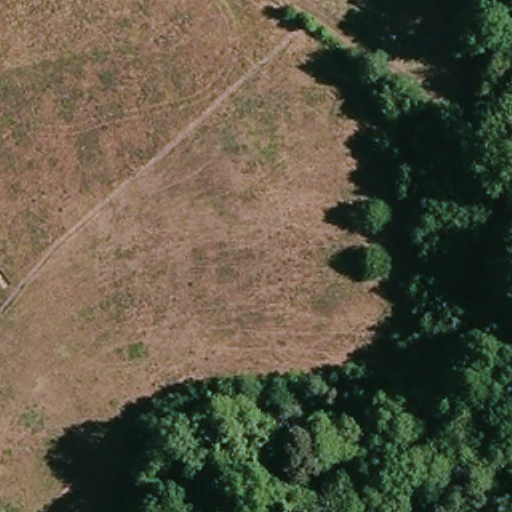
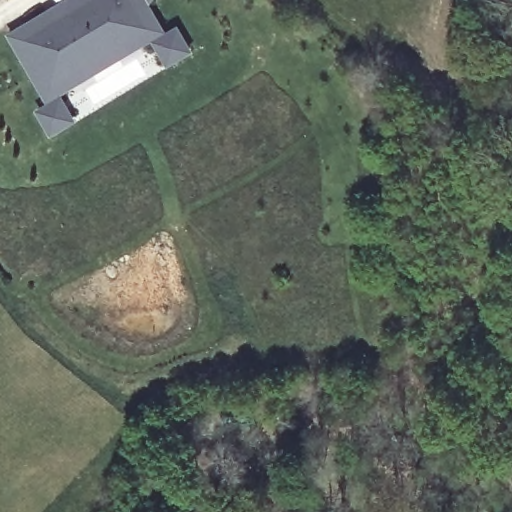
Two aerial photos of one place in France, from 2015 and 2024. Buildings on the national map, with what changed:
new [(50,135),(36,111),(46,104),(6,34),(65,0),(153,0),(149,5),(165,32),(178,25),(193,52),(168,66),(154,39),(61,93),(76,120),(50,135)]

